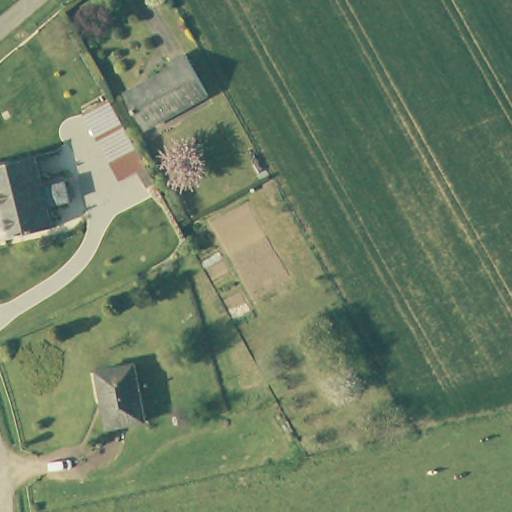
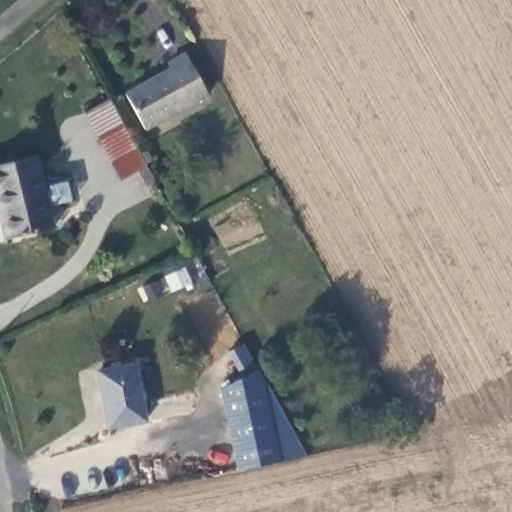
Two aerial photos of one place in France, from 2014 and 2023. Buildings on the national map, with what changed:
unchanged [(173,73),(171,69),(186,60),(208,100),(150,132),(130,96),(173,73)]
unchanged [(108,100),(154,183),(135,194),(127,179),(121,182),(83,114),(108,100)]
unchanged [(41,185),(66,180),(70,199),(46,205),(52,226),(6,236),(0,215),(0,164),(34,157),(41,185)]
demolished [(191,254),(141,279),(125,249),(170,215),(191,254)]
unchanged [(131,368),(143,423),(110,430),(98,375),(131,368)]
new [(258,368),(307,456),(239,469),(220,389),(258,368)]

